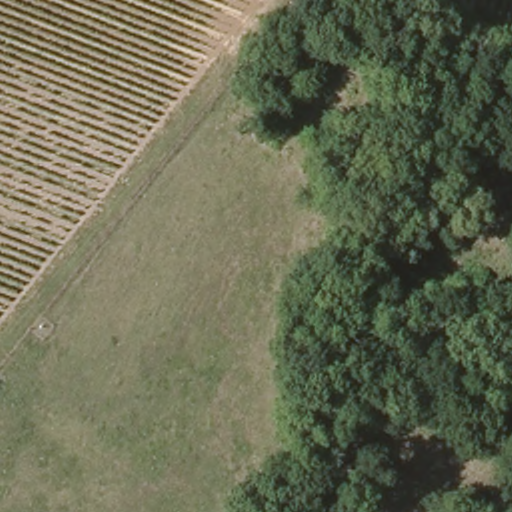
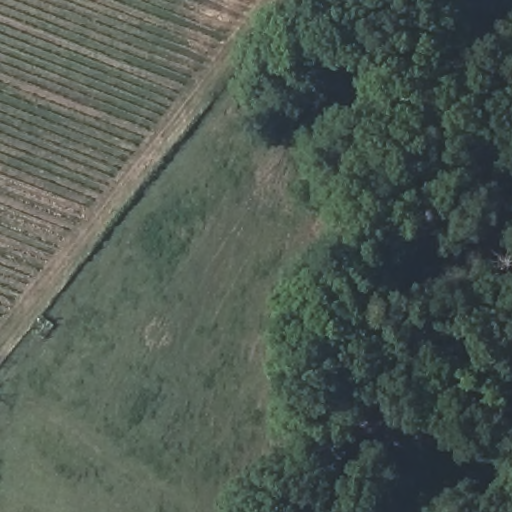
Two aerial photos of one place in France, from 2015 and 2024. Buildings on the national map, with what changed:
[]

